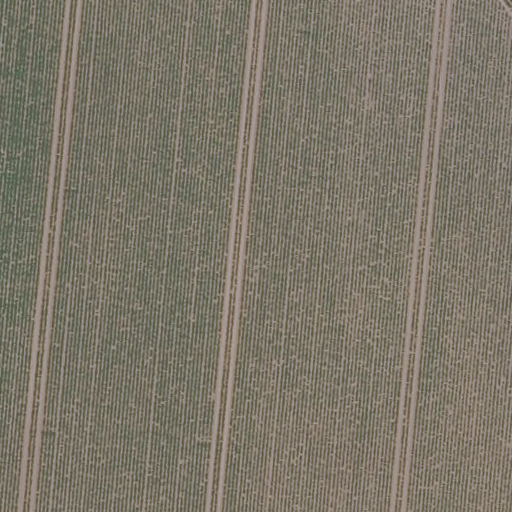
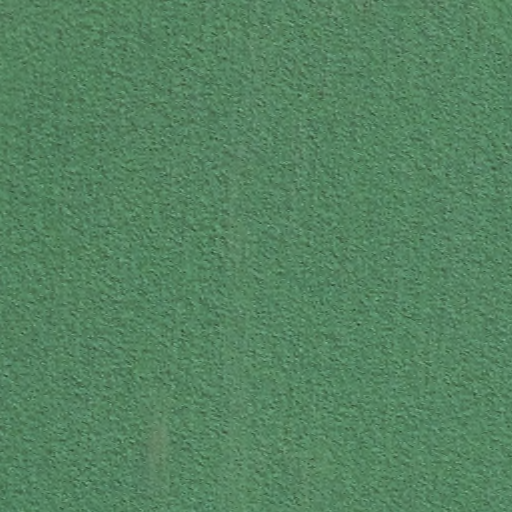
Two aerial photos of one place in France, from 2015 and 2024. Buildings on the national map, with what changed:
[]

